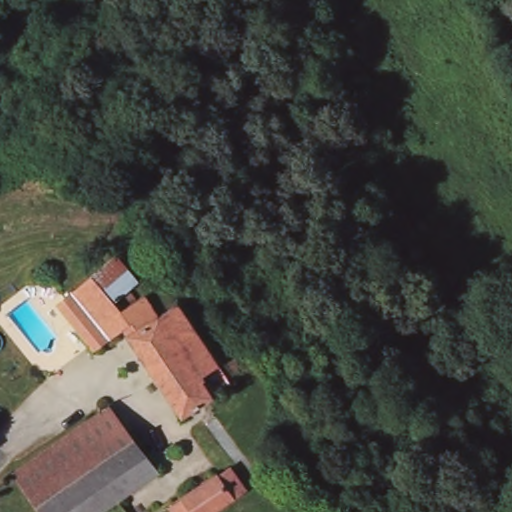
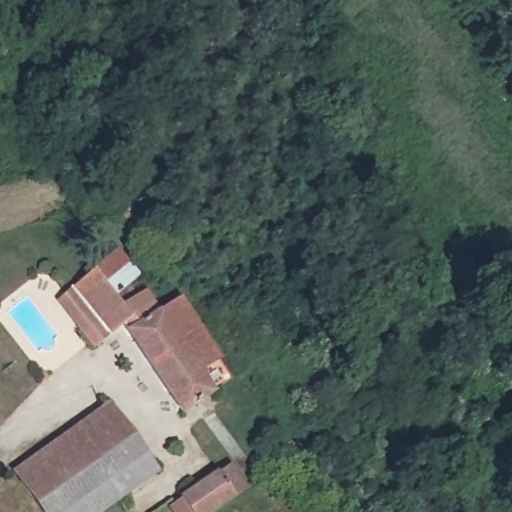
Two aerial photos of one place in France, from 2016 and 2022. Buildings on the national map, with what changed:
unchanged [(90,344),(56,301),(111,249),(134,272),(127,278),(139,290),(145,283),(161,305),(174,294),(216,349),(204,358),(218,379),(205,388),(233,427),(218,437),(190,399),(176,407),(116,323),(90,344)]
unchanged [(155,469),(93,512),(40,512),(11,471),(110,402),(155,469)]
unchanged [(220,473),(230,468),(246,489),(210,512),(175,512),(170,505),(183,498),(179,492),(216,469),(220,473)]

